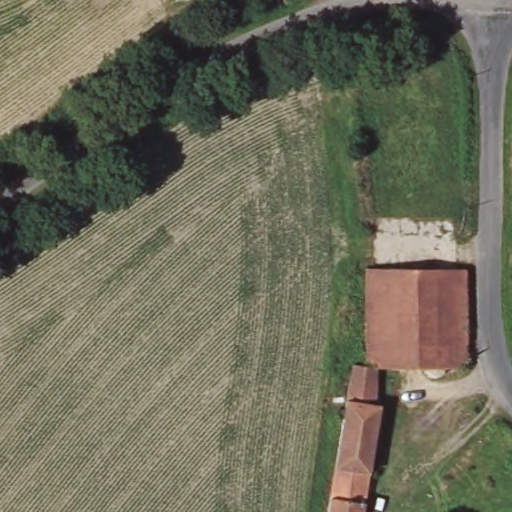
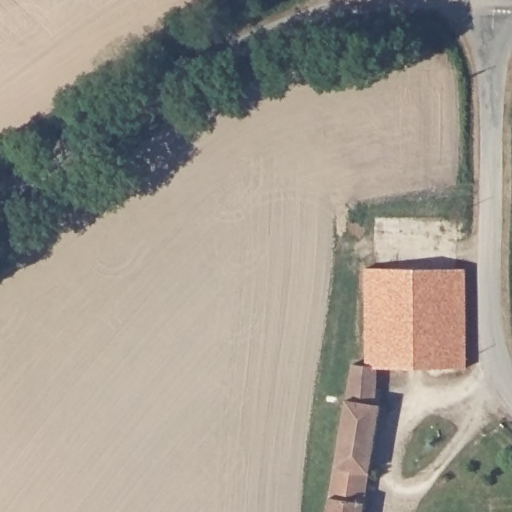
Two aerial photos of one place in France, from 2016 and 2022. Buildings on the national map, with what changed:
unchanged [(463,370),(378,370),(371,407),(377,407),(360,512),(323,512),(346,367),(360,368),(359,271),(462,272),(463,370)]

